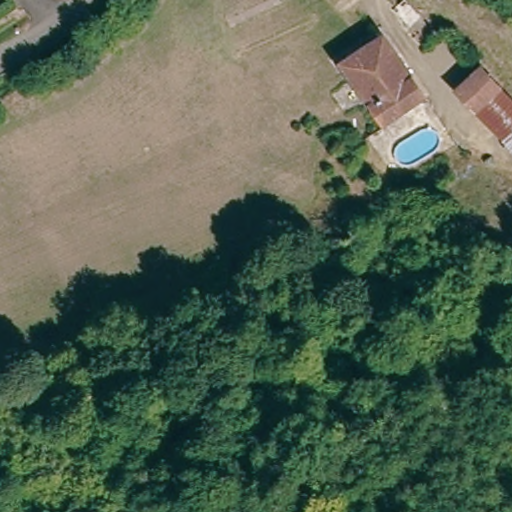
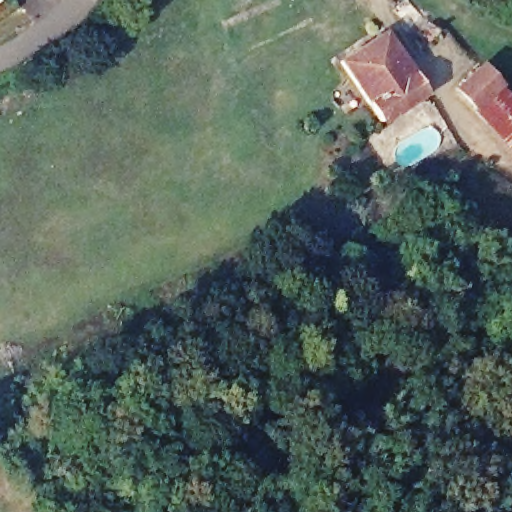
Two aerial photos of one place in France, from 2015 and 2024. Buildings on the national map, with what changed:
unchanged [(512,96),(512,126),(501,136),(482,111),(470,102),(473,96),(440,64),(442,59),(421,34),(437,19),(512,96)]
unchanged [(430,96),(387,123),(347,58),(389,34),(430,96)]
unchanged [(512,126),(512,149),(501,136),(512,126)]

